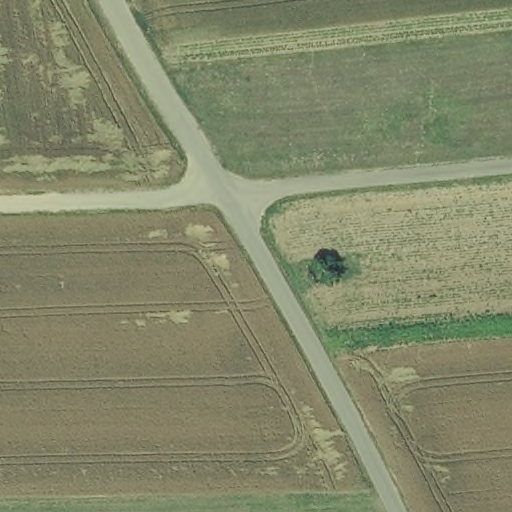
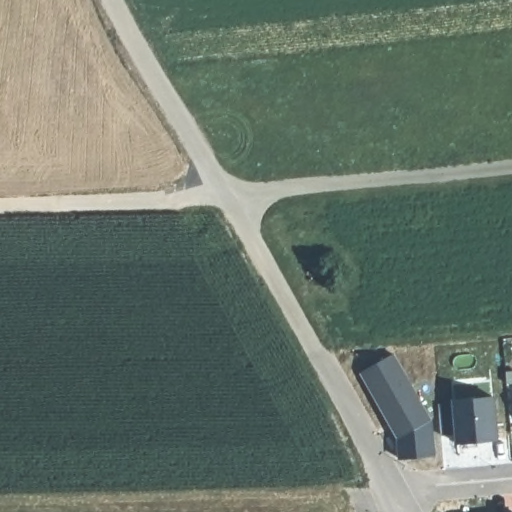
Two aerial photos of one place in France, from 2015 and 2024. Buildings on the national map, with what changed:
new [(397,439),(360,373),(394,354),(431,419),(397,439)]
new [(455,444),(455,434),(443,436),(440,404),(453,403),(452,400),(497,396),(499,441),(455,444)]

